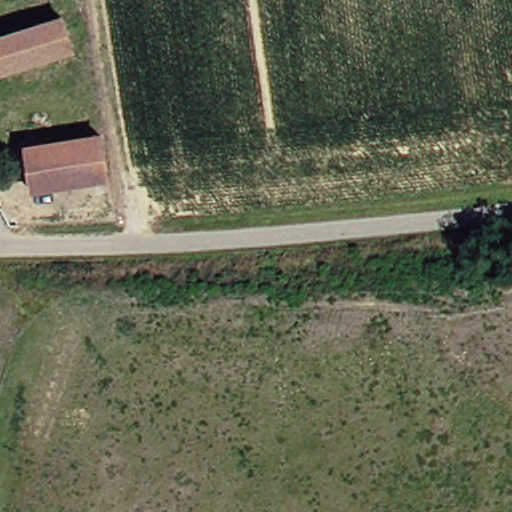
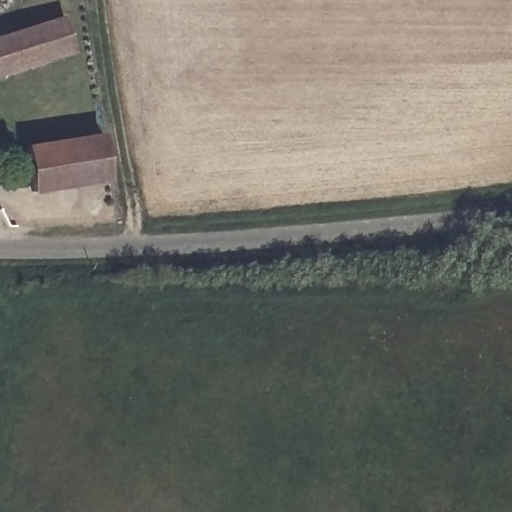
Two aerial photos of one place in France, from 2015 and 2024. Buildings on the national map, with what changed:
unchanged [(0,69),(0,32),(63,10),(75,43),(0,69)]
unchanged [(39,190),(30,142),(104,130),(112,180),(39,190)]

